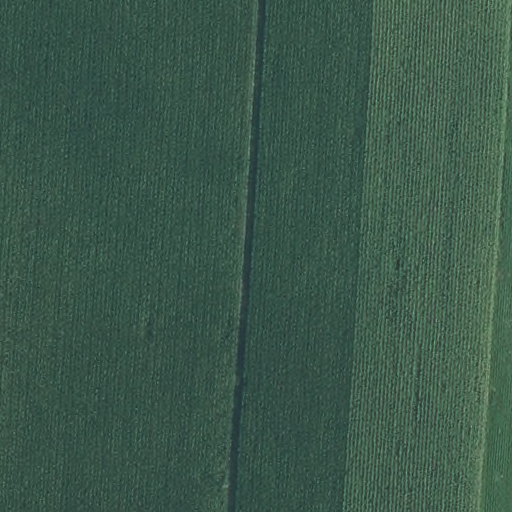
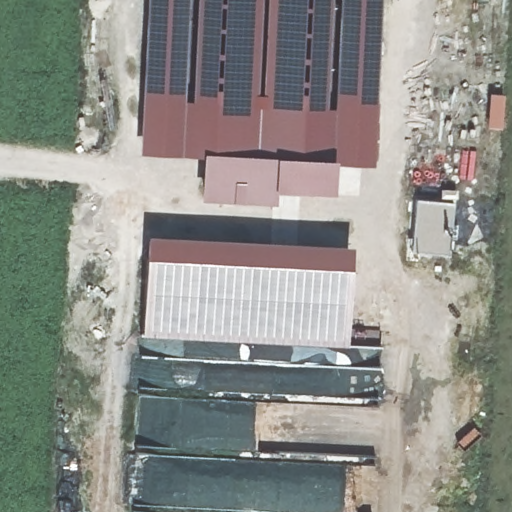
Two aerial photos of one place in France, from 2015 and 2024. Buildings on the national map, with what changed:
new [(142,37),(144,0),(382,0),(372,164),(334,163),(334,157),(273,153),(201,148),(201,156),(138,152),(142,37)]
new [(201,156),(201,148),(273,153),(273,190),(275,202),(200,198),(201,156)]
new [(334,157),(334,163),(333,191),(273,190),(273,153),(334,157)]
new [(412,195),(438,197),(440,186),(456,187),(452,253),(409,252),(412,195)]
new [(353,244),(349,342),(145,332),(150,233),(353,244)]

